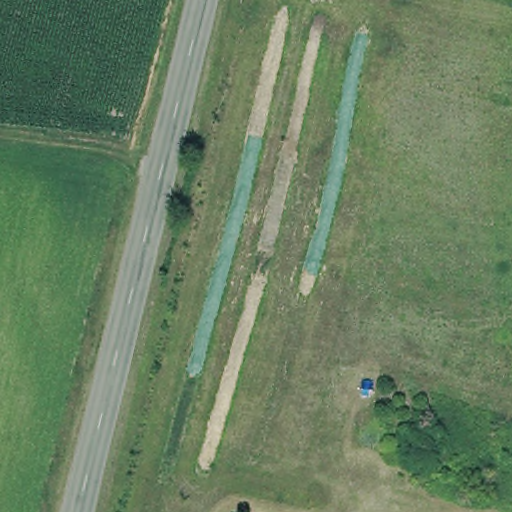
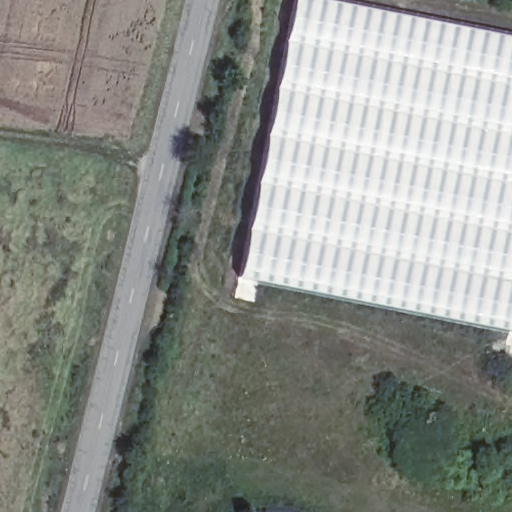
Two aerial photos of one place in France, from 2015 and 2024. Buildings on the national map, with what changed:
new [(512,334),(233,278),(287,0),(345,0),(512,33),(512,334)]

